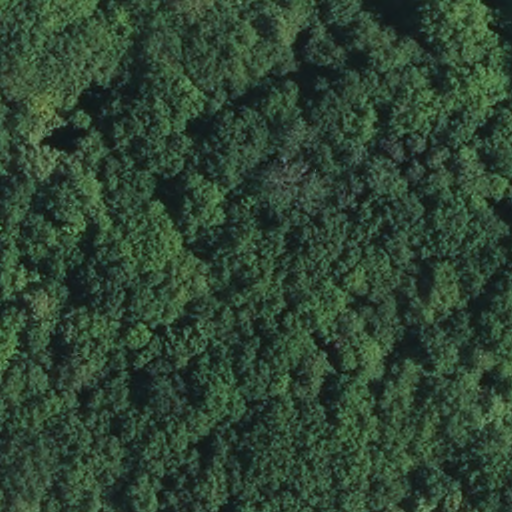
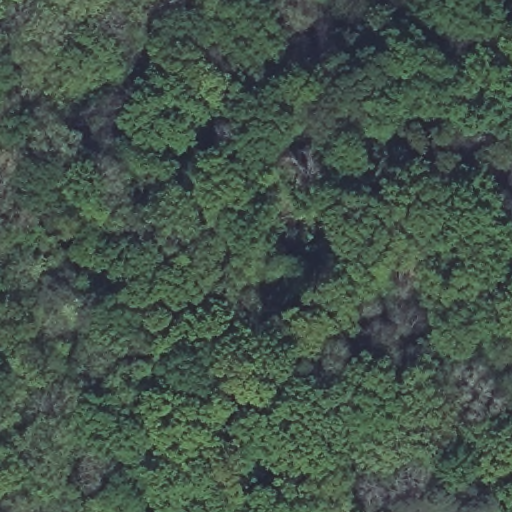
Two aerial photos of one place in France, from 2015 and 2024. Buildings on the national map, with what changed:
[]

